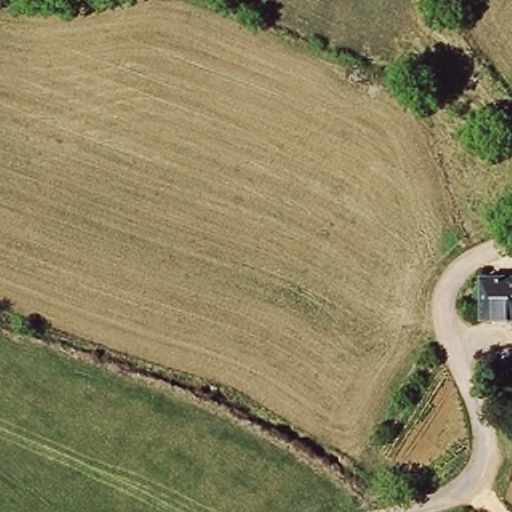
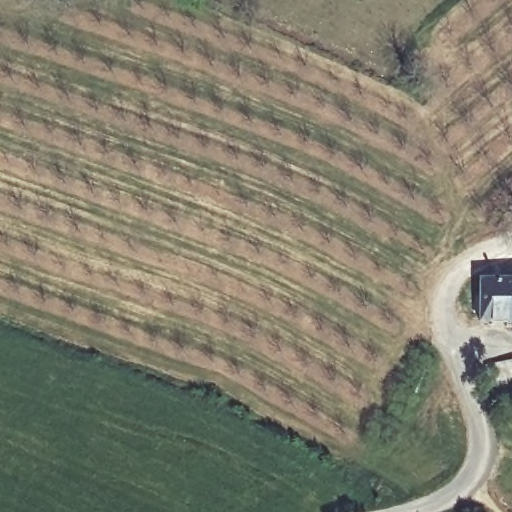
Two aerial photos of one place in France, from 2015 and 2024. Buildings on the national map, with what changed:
unchanged [(482,288),(482,274),(512,276),(512,296),(480,294),(482,288)]
unchanged [(480,294),(512,296),(512,329),(480,329),(480,294)]

